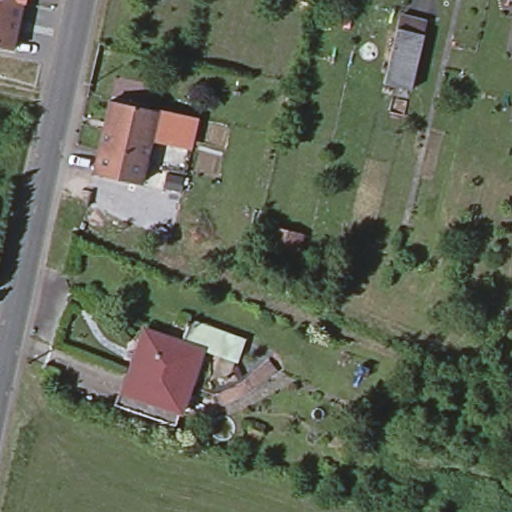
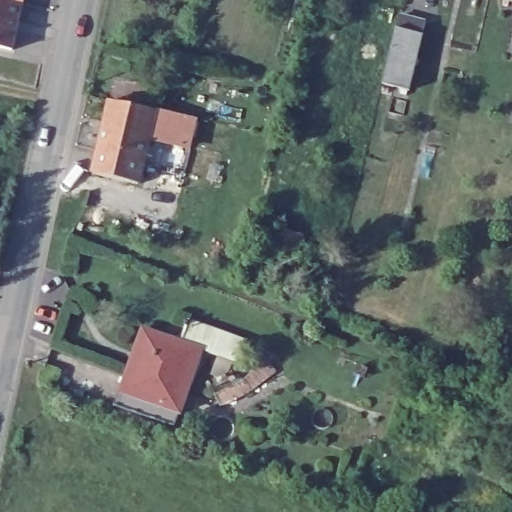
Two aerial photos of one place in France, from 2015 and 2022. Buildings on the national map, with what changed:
unchanged [(0,45),(0,0),(21,0),(11,47),(0,45)]
unchanged [(398,13),(425,20),(410,87),(382,80),(398,13)]
unchanged [(192,150),(153,141),(143,183),(93,173),(109,101),(198,120),(192,150)]
unchanged [(298,260),(262,251),(269,224),(304,231),(298,260)]
unchanged [(188,318),(242,337),(234,358),(200,347),(182,340),(188,318)]
unchanged [(145,328),(182,340),(200,347),(192,369),(137,349),(145,328)]
unchanged [(137,349),(192,369),(185,390),(130,370),(137,349)]
unchanged [(118,405),(122,391),(130,370),(185,390),(178,411),(174,423),(118,405)]

